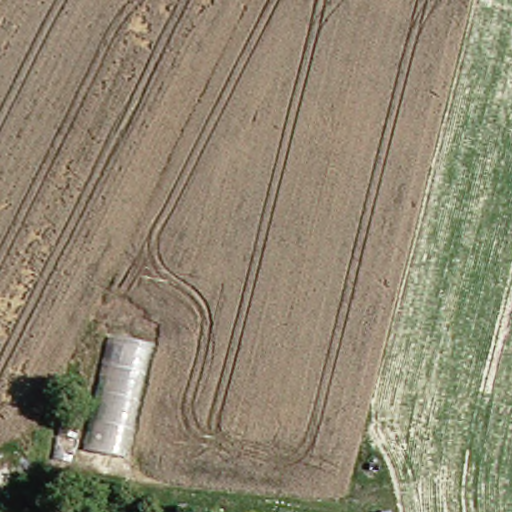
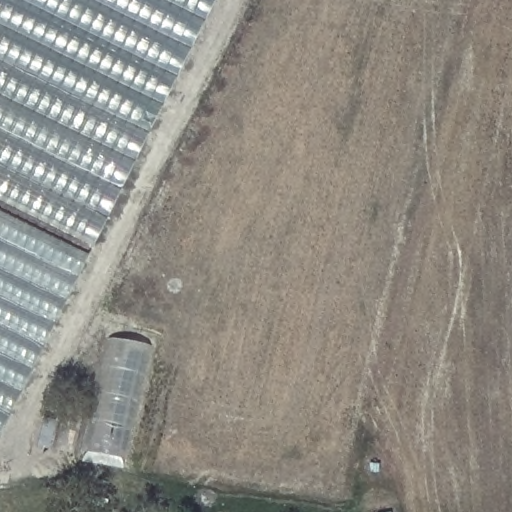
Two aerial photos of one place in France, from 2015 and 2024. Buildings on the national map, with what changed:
new [(4,427),(0,425),(0,0),(213,0),(4,427)]
unchanged [(147,335),(114,472),(77,463),(109,328),(147,335)]

